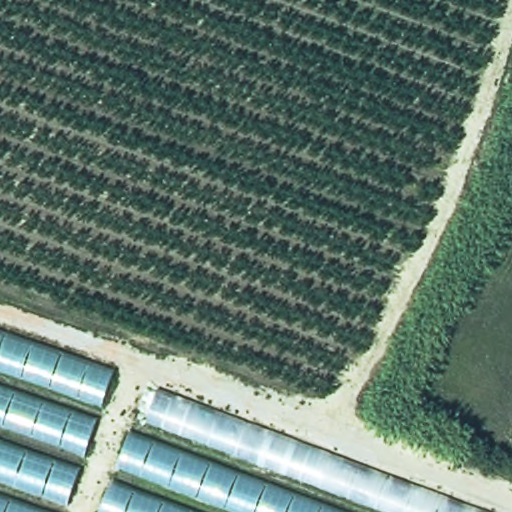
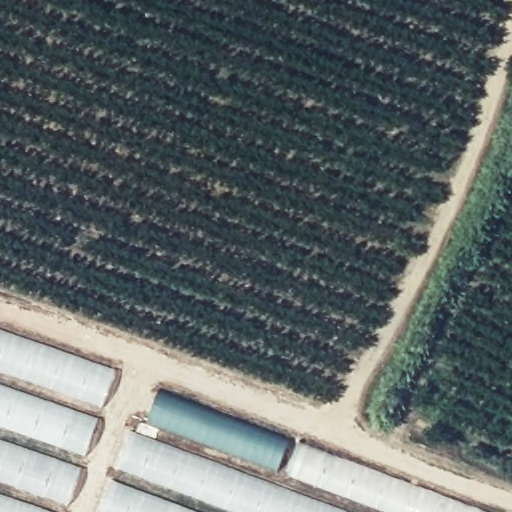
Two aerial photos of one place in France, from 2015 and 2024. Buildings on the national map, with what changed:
unchanged [(114,369),(64,512),(0,512),(0,329),(114,369)]
unchanged [(494,512),(101,512),(149,383),(494,512)]

